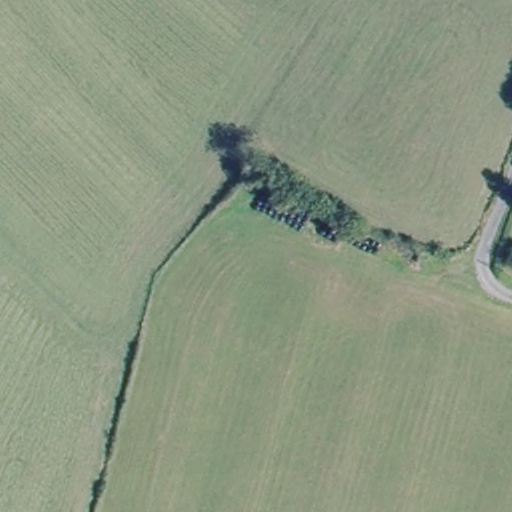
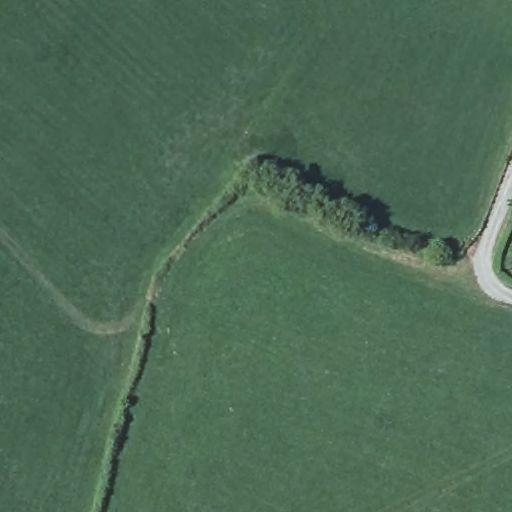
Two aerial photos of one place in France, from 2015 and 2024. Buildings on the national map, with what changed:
[]

